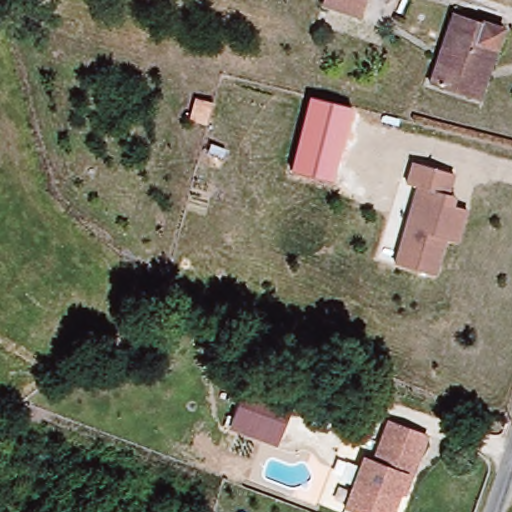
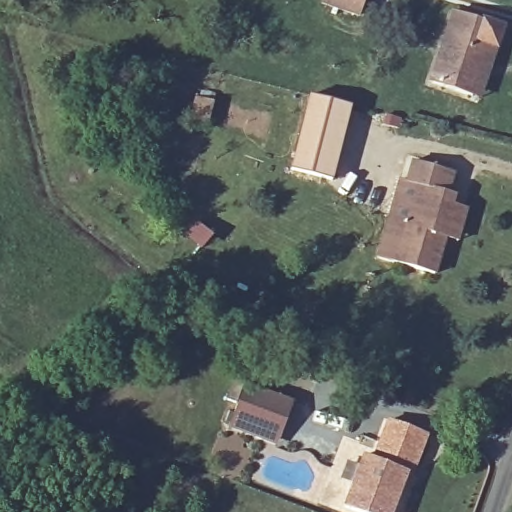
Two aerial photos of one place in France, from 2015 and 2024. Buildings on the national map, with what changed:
unchanged [(322,5),(324,0),(364,0),(360,13),(322,5)]
unchanged [(430,82),(455,11),(503,29),(478,100),(430,82)]
unchanged [(351,107),(332,183),(289,172),(308,97),(351,107)]
unchanged [(434,276),(394,265),(416,189),(406,185),(412,164),(453,175),(447,195),(454,197),(451,206),(454,207),(466,211),(457,243),(445,240),(434,276)]
unchanged [(245,386),(292,402),(277,445),(230,428),(245,386)]
unchanged [(387,512),(362,512),(342,505),(362,453),(372,456),(387,417),(424,431),(409,472),(401,491),(396,490),(387,512)]

